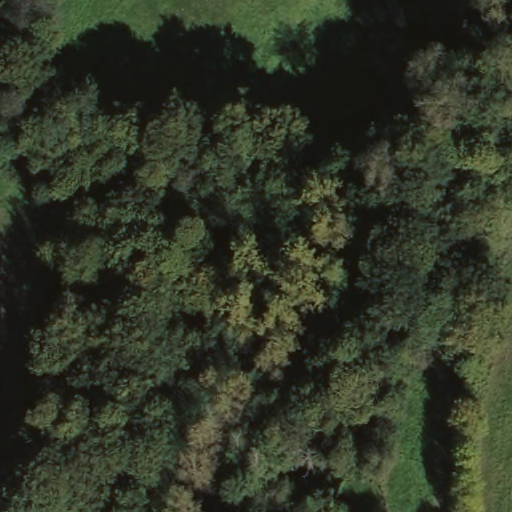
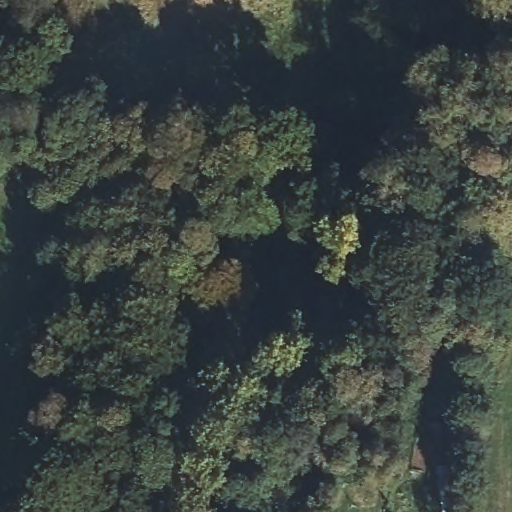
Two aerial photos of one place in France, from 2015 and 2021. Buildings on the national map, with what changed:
[]

